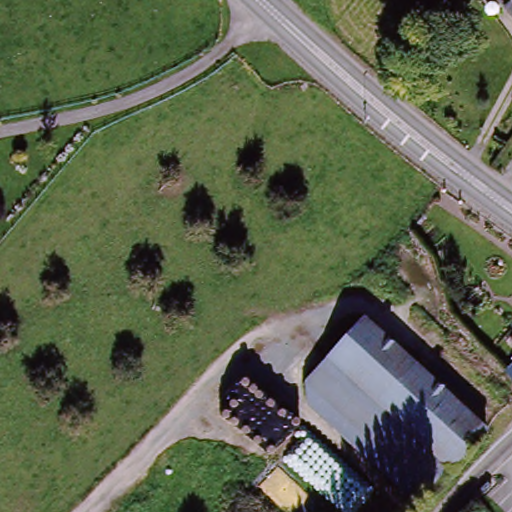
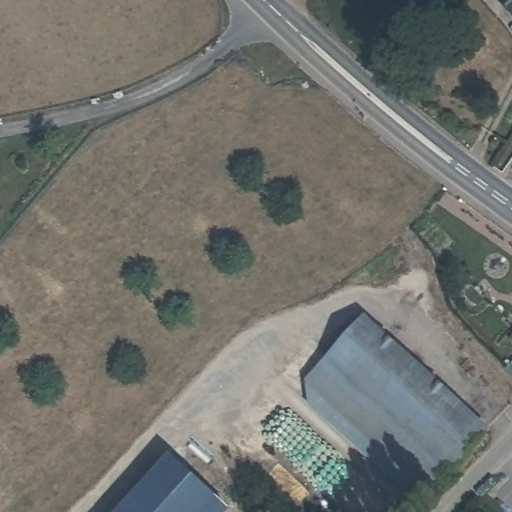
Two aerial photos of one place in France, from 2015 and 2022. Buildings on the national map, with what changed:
unchanged [(512,24),(491,0),(512,0),(512,24)]
unchanged [(363,323),(400,355),(481,426),(446,466),(437,458),(327,363),(363,323)]
unchanged [(327,363),(437,458),(416,481),(307,386),(327,363)]
new [(217,501),(206,512),(122,512),(174,458),(217,501)]

